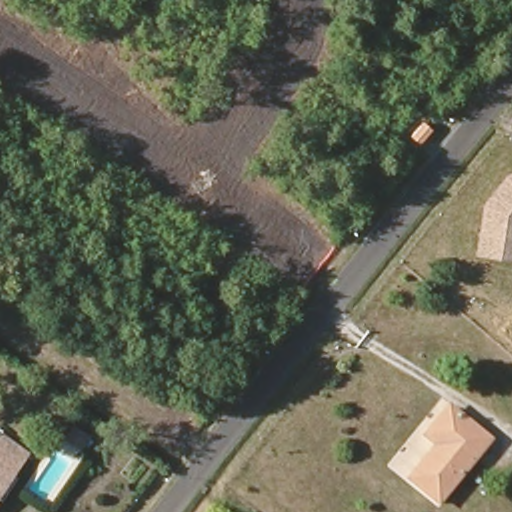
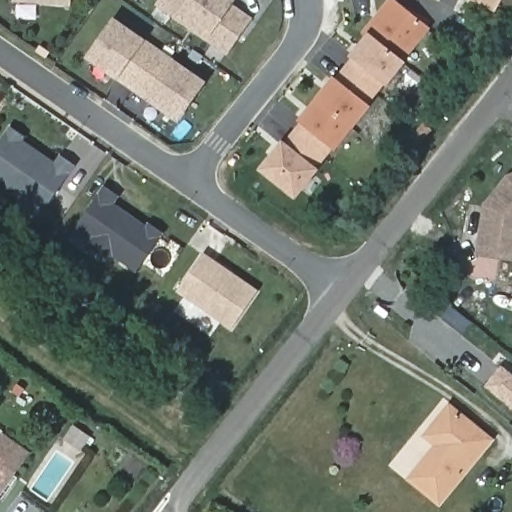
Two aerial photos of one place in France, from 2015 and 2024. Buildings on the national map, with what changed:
new [(13,0),(72,0),(72,7),(12,2),(13,0)]
new [(207,41),(175,20),(155,5),(158,0),(236,0),(234,5),(254,18),(227,55),(207,41)]
new [(387,87),(370,107),(334,151),(318,169),(294,199),(257,171),(282,141),(285,142),(301,124),(297,122),(333,77),(336,79),(337,80),(353,60),(348,56),(366,37),(361,33),(387,0),(393,0),(431,29),(405,64),(387,87)]
new [(474,0),(501,0),(495,11),(474,0)]
new [(205,82),(177,122),(145,101),(117,81),(85,57),(112,18),(144,40),(174,61),(205,82)]
new [(37,222),(16,209),(21,201),(0,185),(0,136),(7,125),(26,137),(23,140),(54,162),(58,155),(76,167),(37,222)]
unchanged [(479,232),(481,219),(484,201),(507,172),(512,170),(512,254),(477,248),(479,232)]
new [(136,275),(111,257),(108,260),(84,244),(87,240),(72,229),(102,186),(119,197),(115,204),(146,226),(149,222),(165,234),(136,275)]
new [(230,330),(177,292),(204,254),(258,290),(230,330)]
new [(512,407),(488,389),(501,370),(512,378),(512,407)]
unchanged [(489,438),(438,502),(408,477),(436,443),(423,432),(447,405),(489,438)]
unchanged [(60,447),(45,437),(53,425),(69,435),(60,447)]
unchanged [(21,457),(0,485),(0,441),(21,457)]

